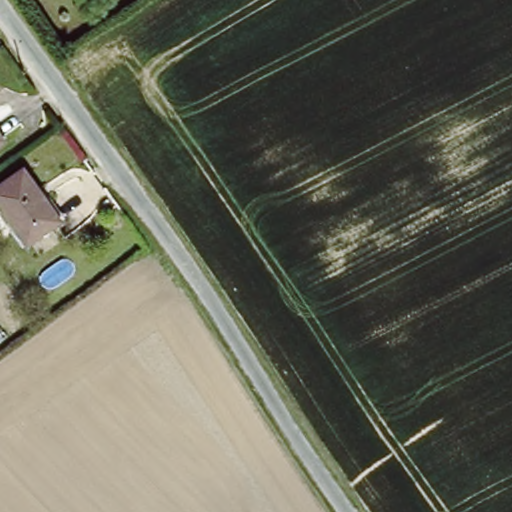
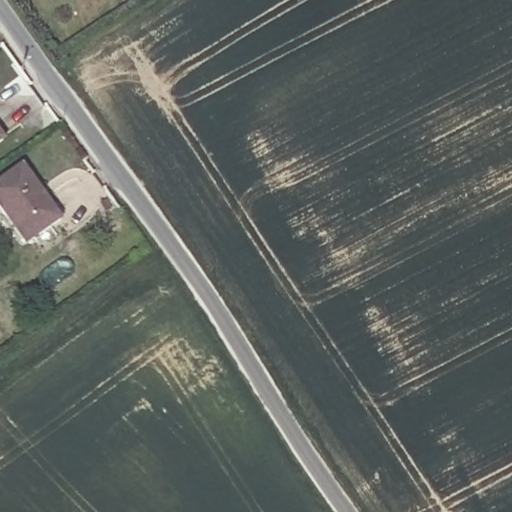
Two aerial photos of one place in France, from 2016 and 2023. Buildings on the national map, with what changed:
unchanged [(0,151),(0,123),(13,142),(0,151)]
unchanged [(58,216),(25,240),(0,205),(0,180),(22,165),(58,216)]

